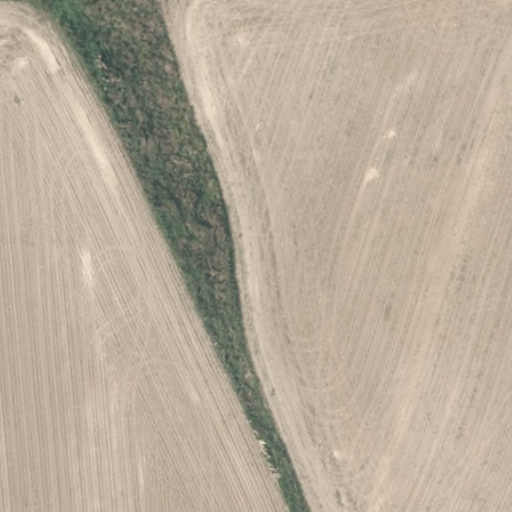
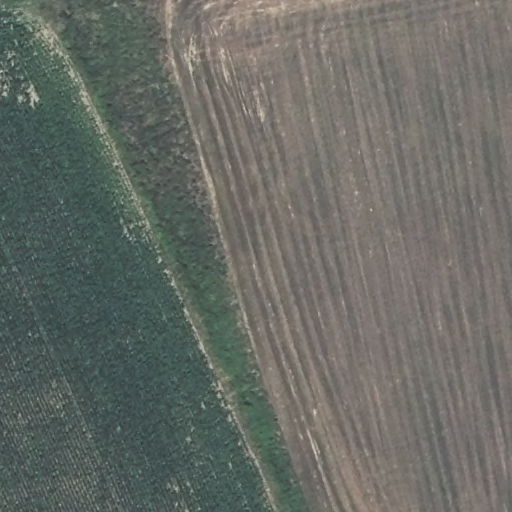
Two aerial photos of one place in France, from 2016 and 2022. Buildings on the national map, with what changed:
[]

